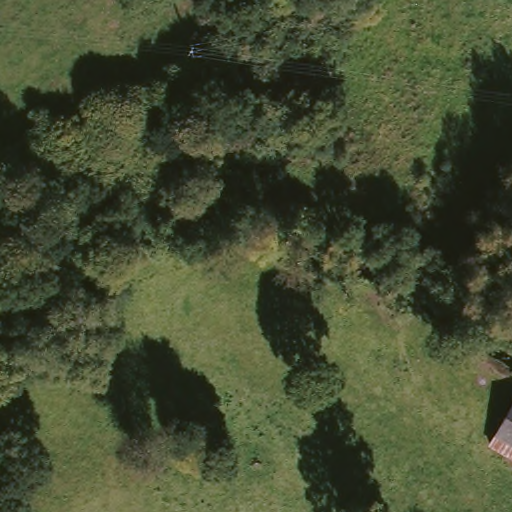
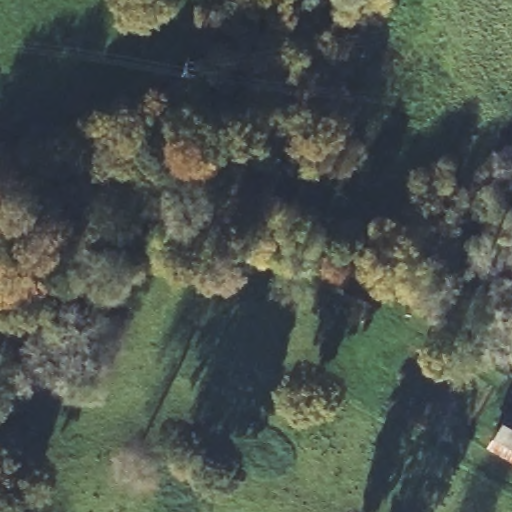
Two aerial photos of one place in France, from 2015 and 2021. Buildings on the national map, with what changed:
unchanged [(512,408),(512,467),(487,452),(512,408)]

